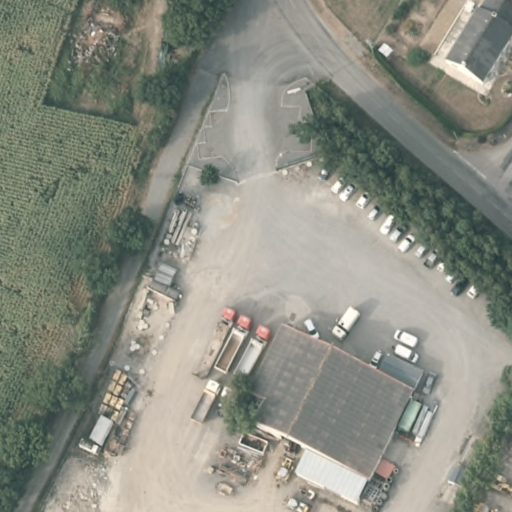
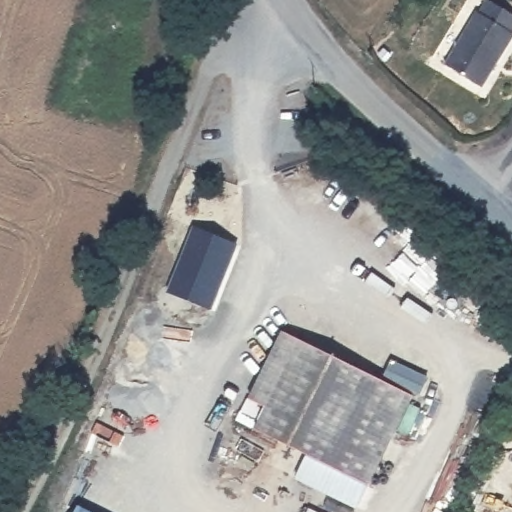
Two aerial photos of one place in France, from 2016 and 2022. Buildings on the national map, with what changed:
unchanged [(476,12),(482,13),(489,0),(490,0),(512,13),(512,43),(488,85),(450,65),(476,12)]
new [(193,225),(239,243),(212,309),(168,290),(193,225)]
unchanged [(258,426),(269,403),(252,395),(286,327),(370,368),(327,460),(258,426)]
unchanged [(370,368),(415,390),(371,481),(327,460),(370,368)]

